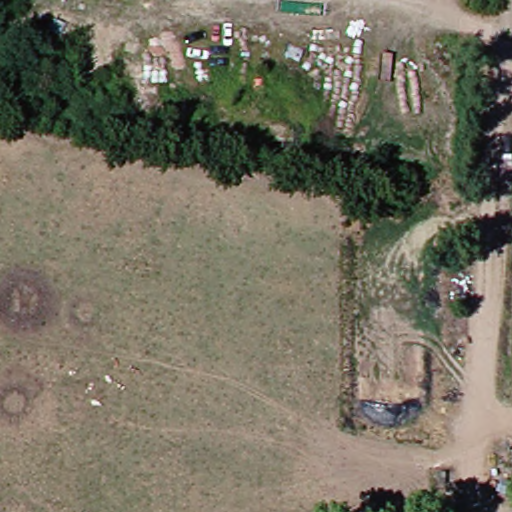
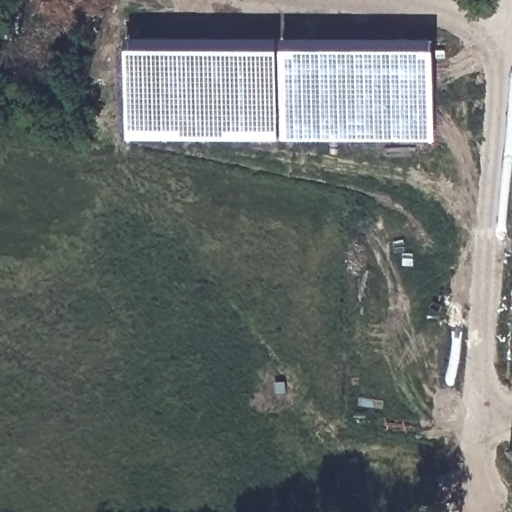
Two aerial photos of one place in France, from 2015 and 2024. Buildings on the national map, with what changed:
new [(127,39),(277,40),(277,141),(126,141),(127,39)]
new [(282,40),(433,40),(433,142),(282,141),(282,40)]

